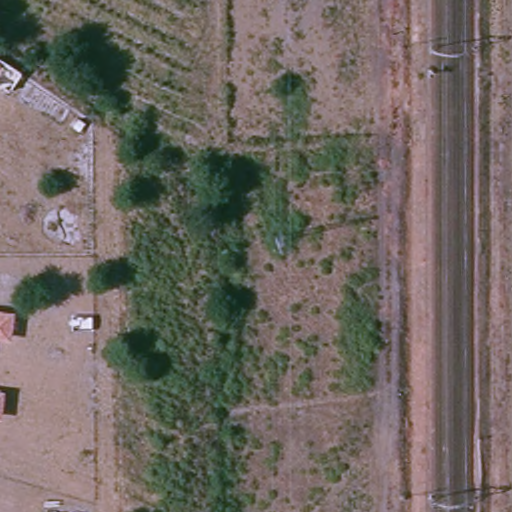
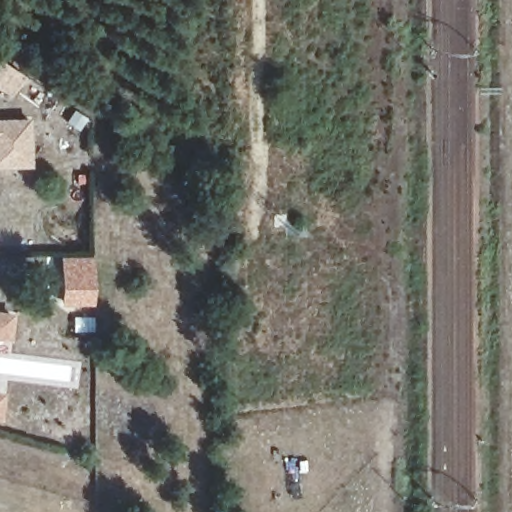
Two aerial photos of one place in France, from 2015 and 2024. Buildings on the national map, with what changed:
new [(19,80),(7,98),(0,93),(0,68),(19,80)]
new [(25,126),(26,171),(0,172),(0,127),(25,126)]
new [(62,304),(61,257),(93,256),(94,304),(62,304)]
unchanged [(15,314),(12,342),(0,341),(0,312),(15,314)]
unchanged [(0,419),(0,391),(4,392),(2,420),(0,419)]

